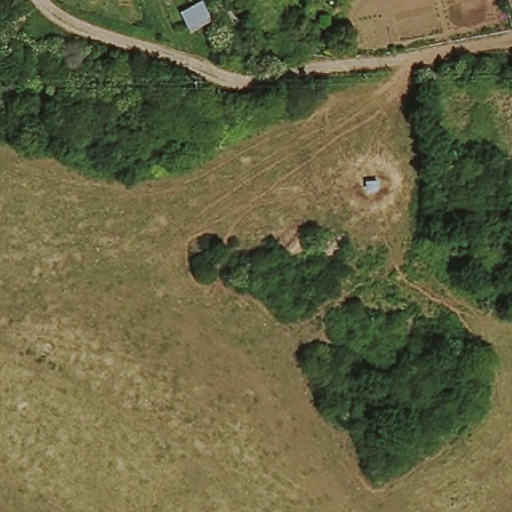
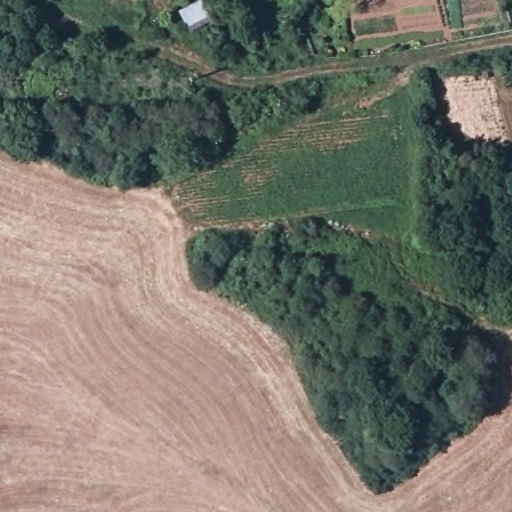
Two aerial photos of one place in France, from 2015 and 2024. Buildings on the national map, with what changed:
unchanged [(186,33),(175,13),(197,3),(207,24),(186,33)]

